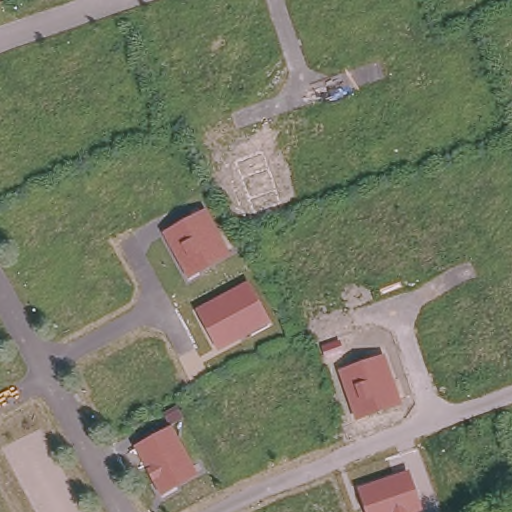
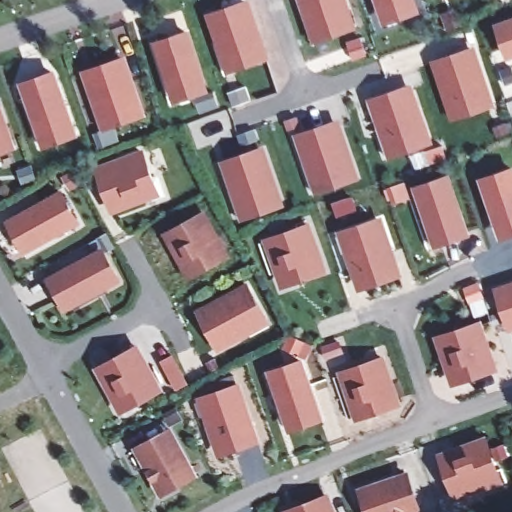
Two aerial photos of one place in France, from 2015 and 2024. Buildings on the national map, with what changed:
new [(271,59),(228,75),(205,14),(244,0),(251,0),(271,59)]
new [(357,28),(315,44),(298,0),(348,0),(357,28)]
new [(422,12),(385,25),(376,0),(418,0),(422,12)]
new [(494,25),(512,18),(512,60),(507,62),(494,25)]
new [(211,91),(174,104),(153,42),(191,29),(211,91)]
new [(149,115),(104,131),(81,70),(127,54),(149,115)]
unchanged [(470,54),(488,105),(461,115),(452,119),(433,67),(442,64),(470,54)]
new [(81,135),(43,149),(19,82),(56,69),(81,135)]
new [(413,82),(434,142),(391,159),(370,99),(413,82)]
unchanged [(11,147),(0,152),(0,119),(11,147)]
new [(333,126),(350,178),(322,187),(313,190),(296,138),(306,135),(333,126)]
new [(109,210),(105,200),(94,169),(138,154),(149,185),(153,195),(109,210)]
unchanged [(259,154),(277,205),(249,215),(241,219),(222,167),(231,164),(259,154)]
new [(479,178),(512,167),(512,237),(501,241),(479,178)]
new [(451,173),(471,235),(436,248),(414,186),(451,173)]
new [(21,249),(17,241),(7,223),(57,196),(67,214),(71,222),(21,249)]
unchanged [(233,255),(189,280),(163,235),(208,209),(233,255)]
new [(404,276),(359,293),(338,234),(383,217),(404,276)]
new [(301,230),(316,269),(287,280),(278,283),(264,245),(273,241),(301,230)]
unchanged [(70,302),(66,293),(56,274),(98,252),(108,271),(113,280),(70,302)]
unchanged [(272,321),(221,349),(197,310),(250,281),(272,321)]
new [(494,287),(512,281),(512,330),(509,331),(494,287)]
new [(475,327),(491,372),(462,381),(452,385),(437,340),(446,337),(475,327)]
new [(267,371),(299,357),(304,342),(314,345),(308,360),(304,359),(326,420),(288,433),(267,371)]
new [(121,414),(96,367),(139,343),(163,390),(121,414)]
unchanged [(401,406),(354,421),(339,371),(385,355),(401,406)]
new [(262,443),(218,458),(196,399),(241,383),(262,443)]
unchanged [(200,476),(162,498),(134,447),(173,426),(200,476)]
new [(504,483),(457,501),(438,453),(488,435),(504,483)]
unchanged [(366,512),(358,488),(409,471),(422,512),(366,512)]
unchanged [(327,512),(290,512),(293,511),(323,500),(327,512)]

